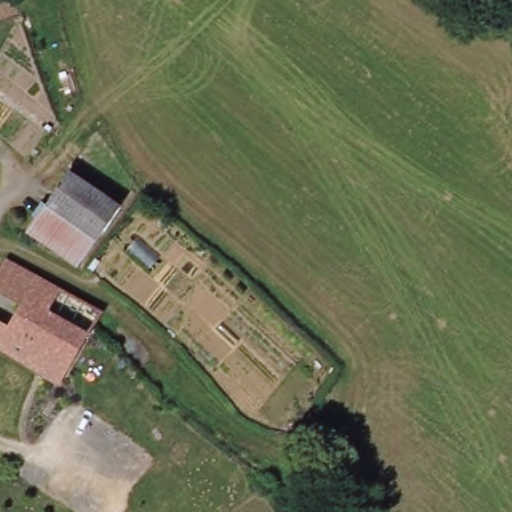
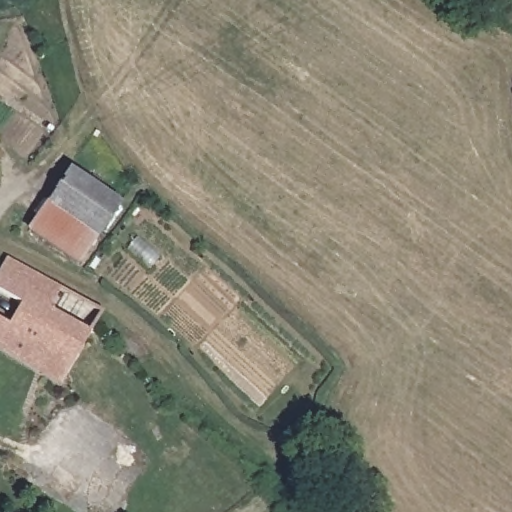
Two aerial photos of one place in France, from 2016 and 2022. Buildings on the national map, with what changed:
unchanged [(67,169),(117,201),(93,239),(42,206),(67,169)]
unchanged [(26,231),(42,206),(93,239),(76,264),(26,231)]
unchanged [(55,385),(0,352),(0,266),(6,255),(105,311),(88,337),(55,385)]

